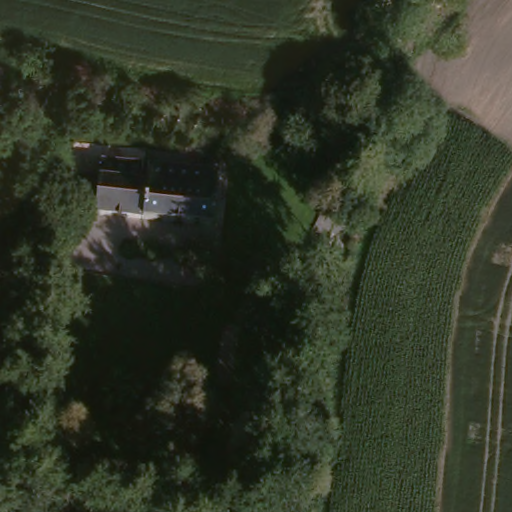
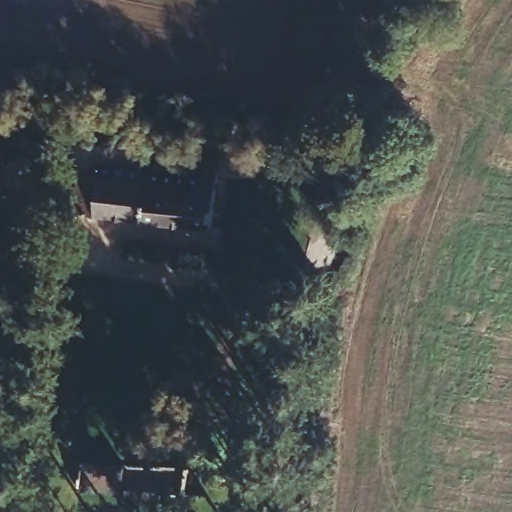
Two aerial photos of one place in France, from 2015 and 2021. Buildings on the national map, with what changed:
unchanged [(209,171),(206,227),(74,218),(76,181),(96,183),(96,165),(209,171)]
unchanged [(234,339),(263,340),(258,399),(229,397),(206,395),(211,337),(234,339)]

